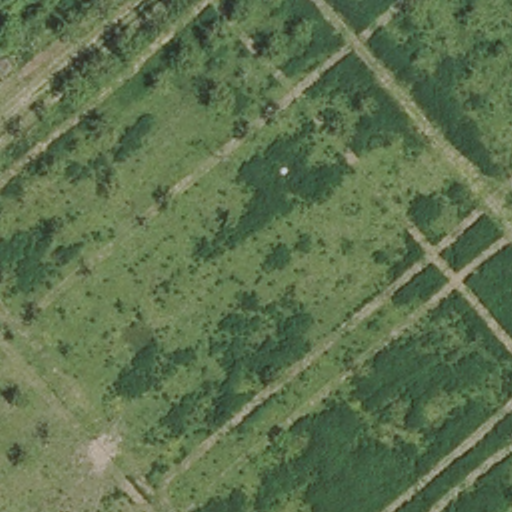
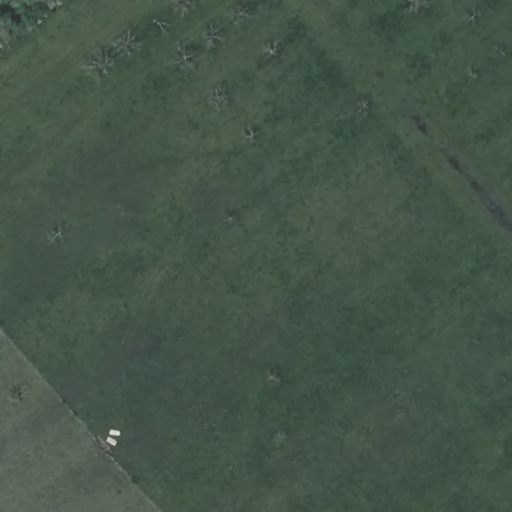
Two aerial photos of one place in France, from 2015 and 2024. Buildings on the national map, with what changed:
[]

